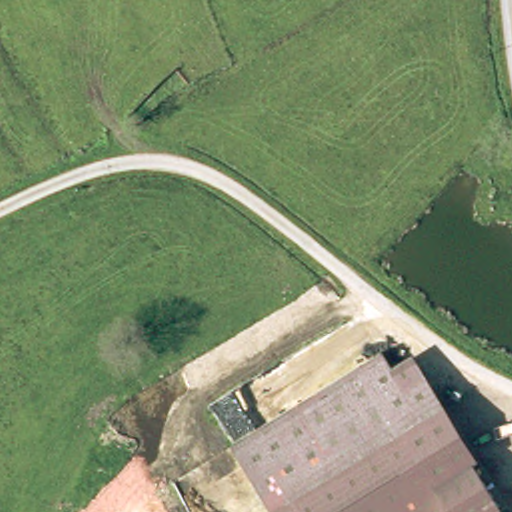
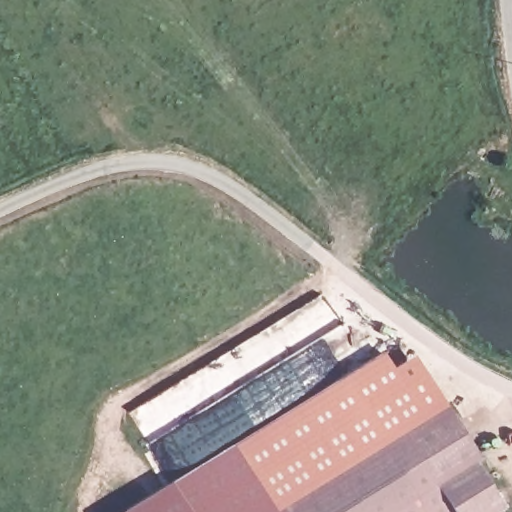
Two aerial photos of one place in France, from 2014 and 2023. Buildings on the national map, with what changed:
unchanged [(424,365),(483,450),(477,455),(506,498),(500,504),(505,512),(278,512),(235,450),(380,351),(401,380),(424,365)]
new [(232,443),(235,450),(278,512),(118,512),(170,480),(232,443)]

